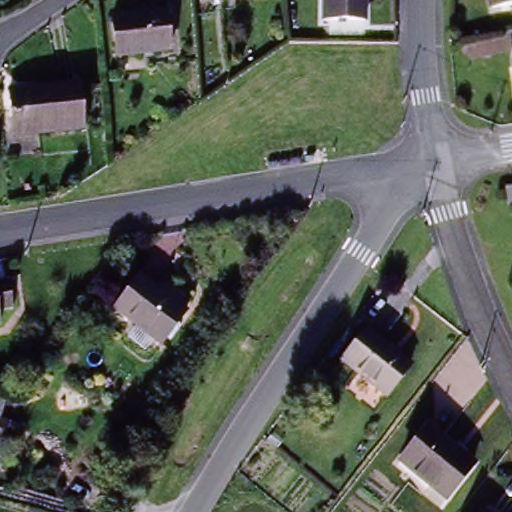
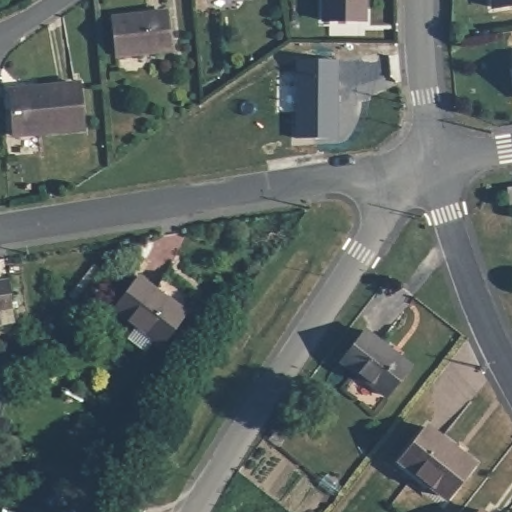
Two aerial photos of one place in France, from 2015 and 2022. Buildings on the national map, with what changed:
unchanged [(353,19),(320,18),(321,0),(363,0),(362,19),(353,19)]
unchanged [(512,0),(512,6),(488,10),(486,0),(512,0)]
unchanged [(110,17),(160,12),(163,48),(113,53),(110,17)]
new [(341,140),(300,140),(297,62),(338,62),(341,140)]
unchanged [(76,86),(80,129),(15,134),(11,92),(76,86)]
unchanged [(170,296),(185,311),(154,342),(114,302),(142,273),(168,299),(170,296)]
unchanged [(15,309),(0,311),(0,280),(10,278),(15,309)]
unchanged [(0,325),(0,314),(1,325),(0,325)]
unchanged [(391,350),(400,357),(410,365),(385,397),(338,359),(363,327),(391,350)]
new [(0,427),(0,397),(6,399),(0,427)]
unchanged [(397,458),(425,423),(470,460),(443,495),(397,458)]
unchanged [(476,510),(479,512),(475,512),(476,510)]

